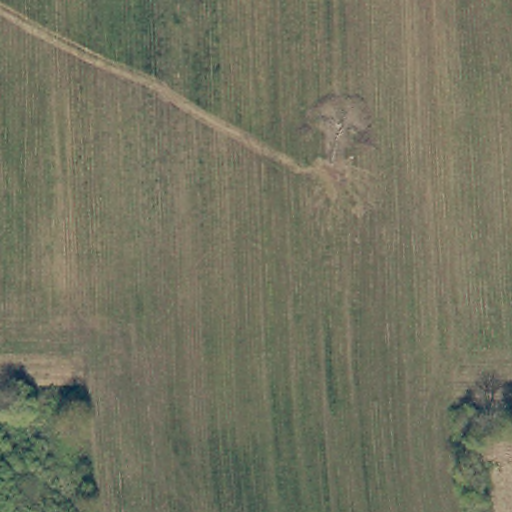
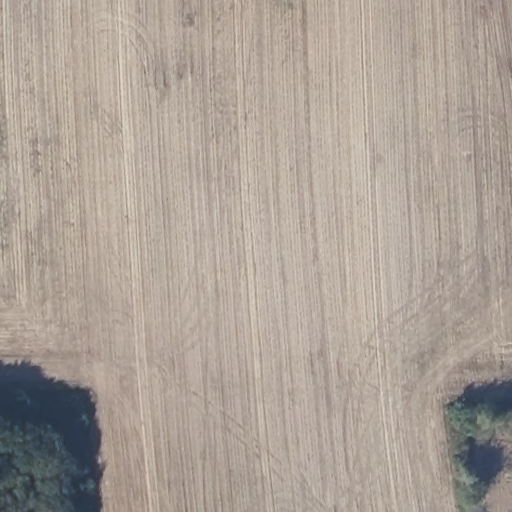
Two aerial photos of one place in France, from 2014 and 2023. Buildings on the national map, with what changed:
[]

